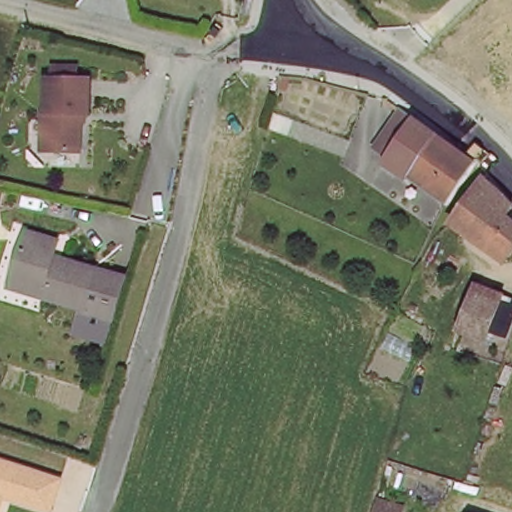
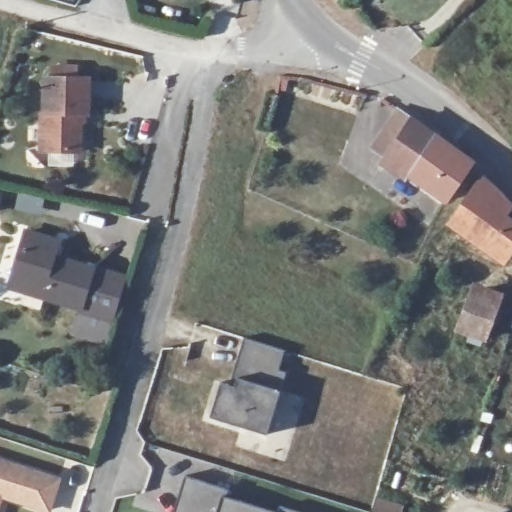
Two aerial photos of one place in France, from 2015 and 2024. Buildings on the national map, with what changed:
unchanged [(84,112),(84,151),(50,151),(48,81),(90,81),(91,111),(84,112)]
unchanged [(433,134),(479,166),(450,206),(391,163),(394,160),(381,150),(404,114),(433,134)]
unchanged [(507,257),(457,221),(462,212),(489,173),(512,194),(512,205),(510,208),(512,210),(512,250),(507,257)]
unchanged [(25,247),(30,233),(64,242),(59,259),(98,271),(88,311),(51,301),(13,291),(25,247)]
unchanged [(128,280),(120,320),(88,311),(98,271),(128,280)]
unchanged [(476,289),(503,299),(486,343),(460,333),(476,289)]
new [(279,369),(286,371),(267,435),(210,418),(220,383),(229,386),(243,338),(284,350),(279,369)]
unchanged [(49,512),(47,512),(1,498),(0,501),(0,464),(58,482),(49,512)]
new [(228,497),(280,512),(174,512),(186,475),(230,489),(228,497)]
new [(304,512),(280,512),(281,505),(304,512)]
unchanged [(375,506),(398,512),(373,512),(374,510),(375,506)]

